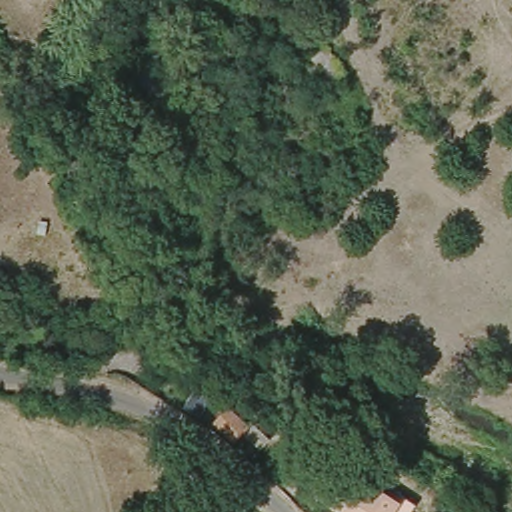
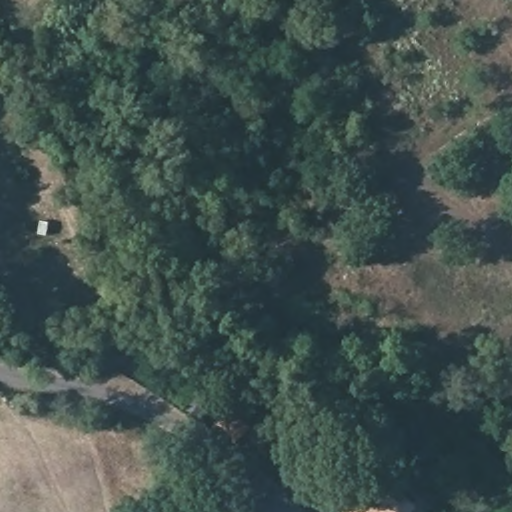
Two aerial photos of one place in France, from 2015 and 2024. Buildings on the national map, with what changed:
unchanged [(320,93),(298,59),(330,42),(348,75),(320,93)]
unchanged [(255,457),(212,423),(224,409),(235,397),(276,435),(273,438),(255,457)]
unchanged [(403,512),(353,512),(367,497),(374,504),(383,494),(403,512)]

